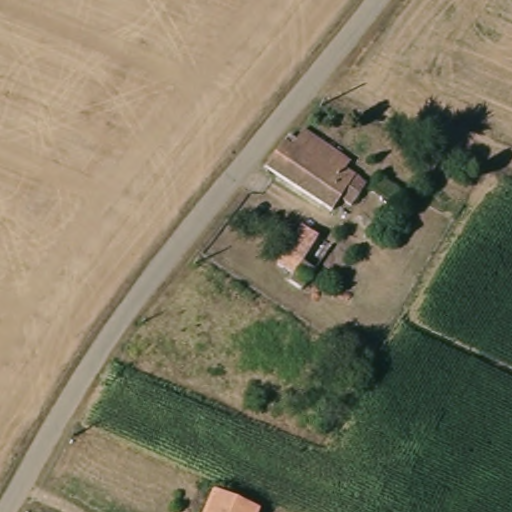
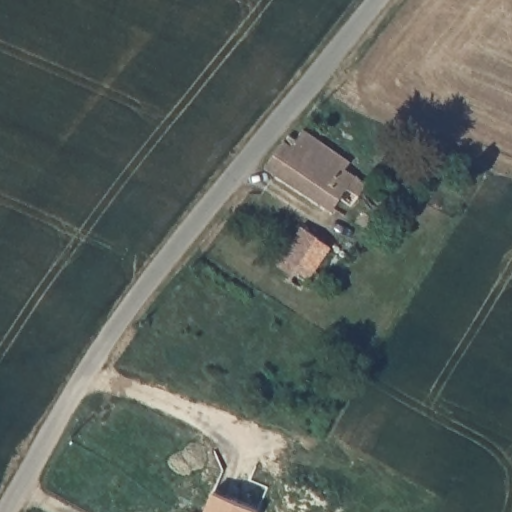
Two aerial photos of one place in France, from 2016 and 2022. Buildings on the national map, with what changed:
unchanged [(289,136),(297,141),(302,133),(347,164),(342,170),(364,184),(349,205),(336,196),(329,208),(264,166),(289,136)]
unchanged [(397,190),(396,203),(375,191),(378,179),(397,190)]
unchanged [(331,253),(314,280),(306,275),(294,292),(280,283),(284,276),(269,266),(290,227),(331,253)]
unchanged [(201,506),(207,491),(253,510),(252,512),(198,512),(201,506)]

